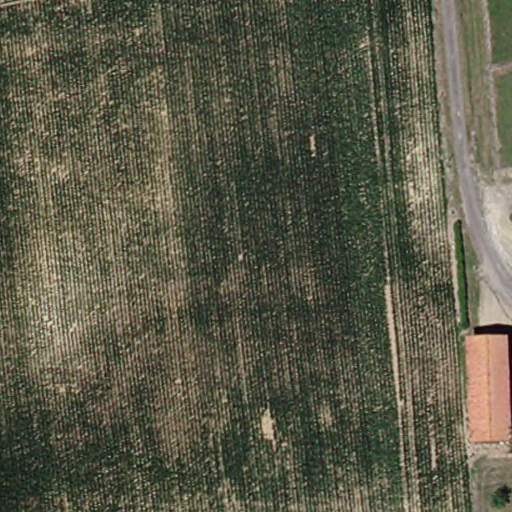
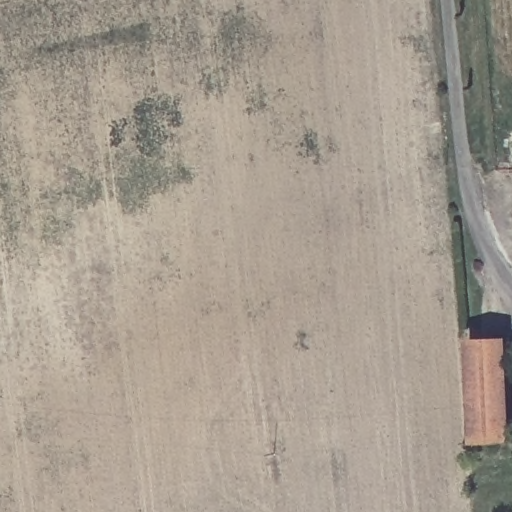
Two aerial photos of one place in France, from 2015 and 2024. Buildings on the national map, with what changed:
unchanged [(512,442),(481,444),(477,341),(512,340),(512,442)]

